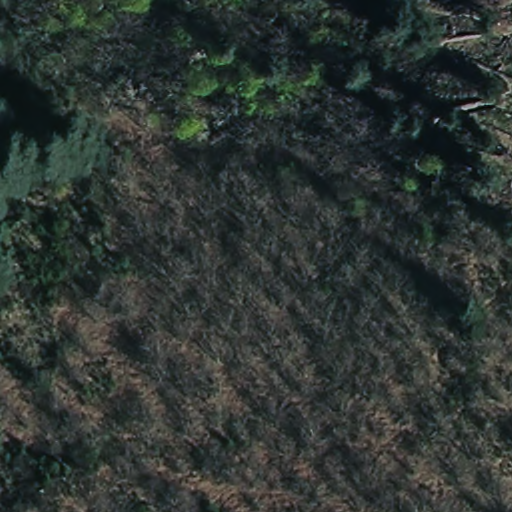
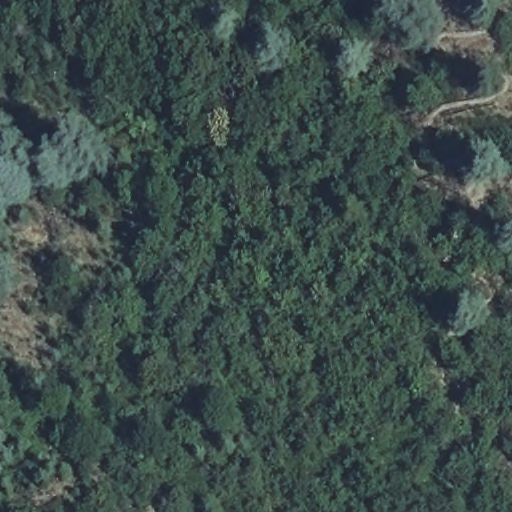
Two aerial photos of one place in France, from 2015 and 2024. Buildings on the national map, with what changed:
[]

